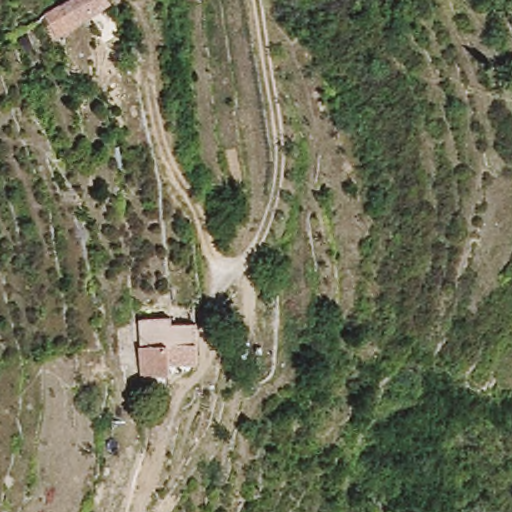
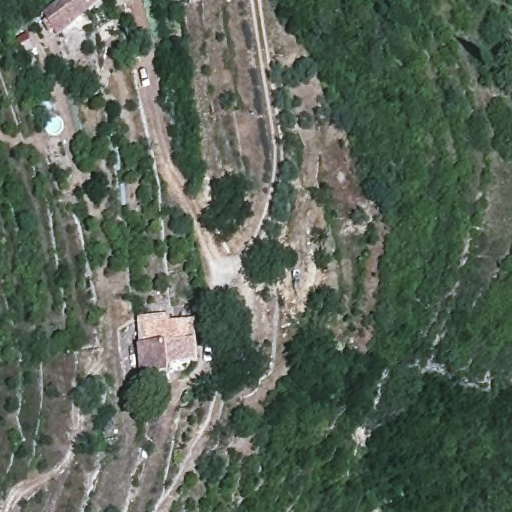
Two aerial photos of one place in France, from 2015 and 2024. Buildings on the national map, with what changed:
unchanged [(116,5),(60,41),(43,16),(67,0),(121,0),(116,5)]
unchanged [(173,309),(198,310),(197,328),(196,367),(168,366),(167,376),(138,375),(140,345),(143,345),(144,320),(173,321),(173,309)]

